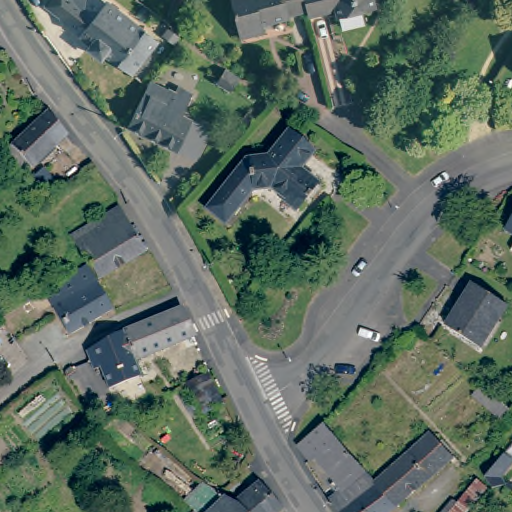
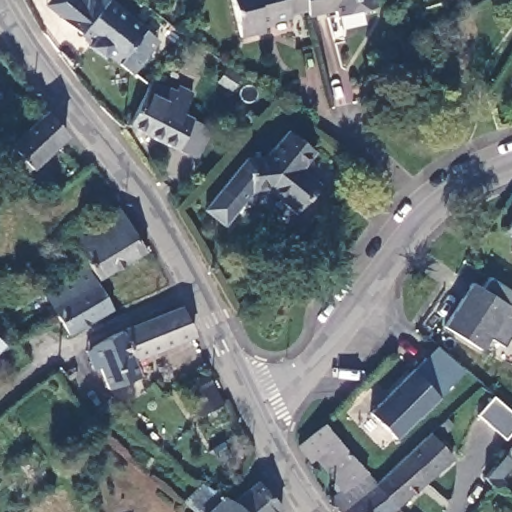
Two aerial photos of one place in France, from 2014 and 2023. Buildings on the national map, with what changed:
unchanged [(134,74),(119,64),(107,54),(104,57),(90,46),(93,43),(62,19),(63,18),(47,5),(51,0),(107,0),(146,30),(160,41),(149,54),(134,74)]
unchanged [(287,16),(260,22),(261,29),(237,34),(229,0),(303,0),(305,8),(286,12),(287,16)]
unchanged [(334,13),(332,8),(306,14),(305,8),(303,0),(372,0),(373,4),(334,13)]
unchanged [(239,78),(230,89),(218,82),(226,69),(239,78)]
unchanged [(202,160),(184,151),(135,126),(157,81),(181,94),(184,88),(199,95),(189,115),(199,120),(217,129),(202,160)]
unchanged [(26,177),(6,155),(52,114),(72,135),(26,177)]
unchanged [(300,169),(319,184),(297,214),(293,210),(295,208),(273,190),(253,192),(227,225),(208,210),(247,159),(250,159),(268,158),(288,133),(313,152),(300,169)]
unchanged [(48,172),(56,181),(43,194),(34,184),(48,172)]
unchanged [(121,284),(131,305),(117,312),(116,309),(98,279),(89,264),(72,237),(119,209),(145,252),(107,274),(114,287),(121,284)]
unchanged [(512,224),(512,234),(507,232),(512,224)]
unchanged [(112,311),(69,337),(42,292),(85,267),(112,311)]
unchanged [(480,349),(445,327),(473,285),(507,307),(480,349)]
unchanged [(133,362),(122,332),(180,309),(193,338),(133,362)]
unchanged [(133,362),(139,379),(110,389),(101,366),(93,369),(87,350),(122,332),(133,362)]
new [(436,346),(464,371),(451,384),(418,417),(417,416),(394,438),(369,413),(425,358),(436,346)]
unchanged [(68,371),(69,372),(72,373),(75,376),(76,379),(75,383),(71,386),(68,386),(64,384),(62,383),(61,381),(60,379),(61,374),(64,372),(68,371)]
unchanged [(221,405),(198,417),(183,387),(207,375),(221,405)]
unchanged [(472,397),(483,386),(511,411),(502,422),(472,397)]
unchanged [(346,489),(320,458),(314,462),(302,446),(328,424),(379,483),(402,507),(396,512),(345,512),(335,500),(346,489)]
unchanged [(402,507),(379,483),(435,433),(458,458),(402,507)]
unchanged [(512,466),(502,478),(506,486),(492,490),(484,477),(505,454),(512,460),(512,466)]
unchanged [(281,512),(238,512),(232,507),(257,486),(281,512)]
demolished [(512,488),(512,498),(508,492),(512,488)]
unchanged [(202,489),(223,501),(232,507),(238,512),(187,512),(184,509),(202,489)]

